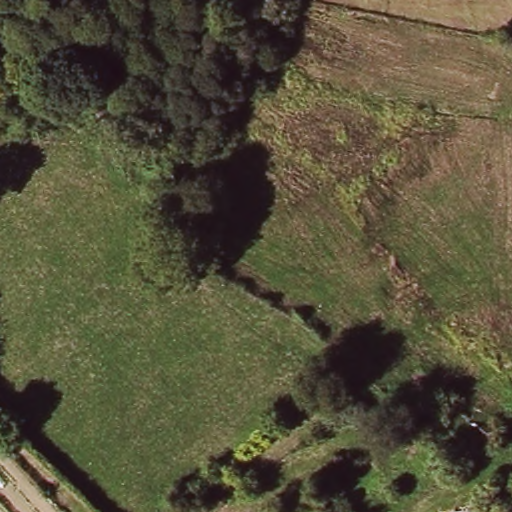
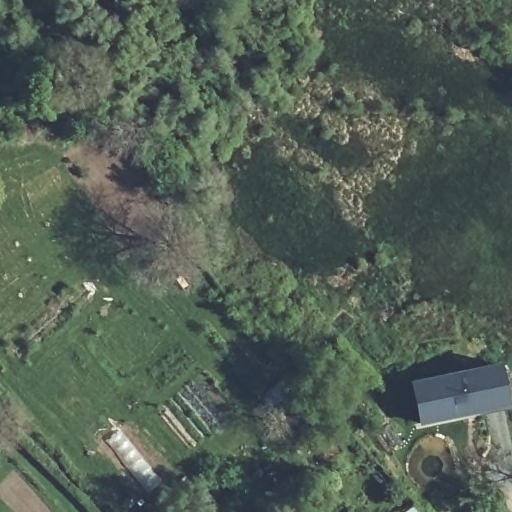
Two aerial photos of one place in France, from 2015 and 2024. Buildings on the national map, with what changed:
new [(511,406),(419,425),(410,380),(500,362),(511,406)]
new [(405,512),(412,507),(415,512),(405,512)]

